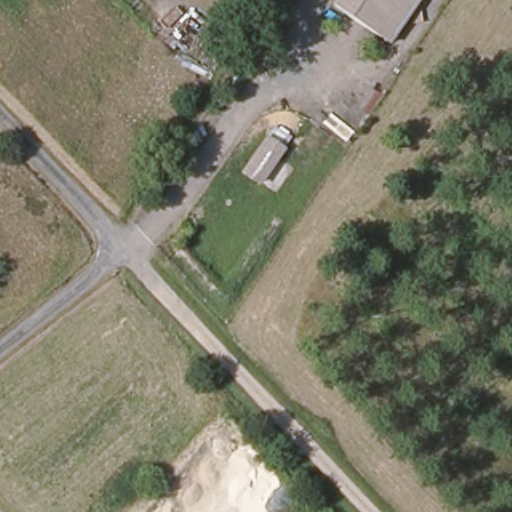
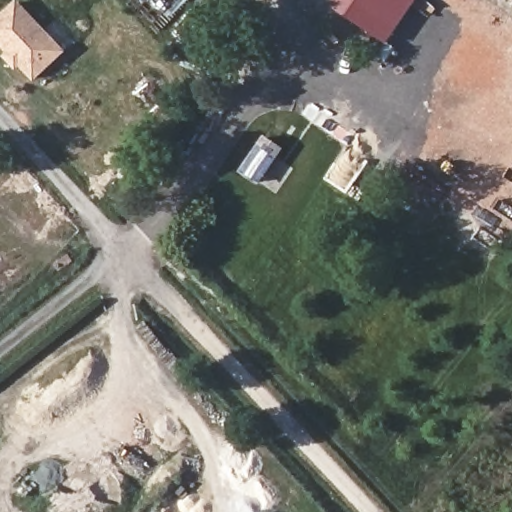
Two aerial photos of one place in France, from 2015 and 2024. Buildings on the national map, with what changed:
unchanged [(394,44),(340,7),(345,0),(424,0),(394,44)]
new [(68,50),(39,77),(0,35),(0,23),(23,2),(68,50)]
new [(26,62),(22,66),(11,56),(15,52),(26,62)]
unchanged [(264,134),(284,147),(258,185),(239,169),(264,134)]

